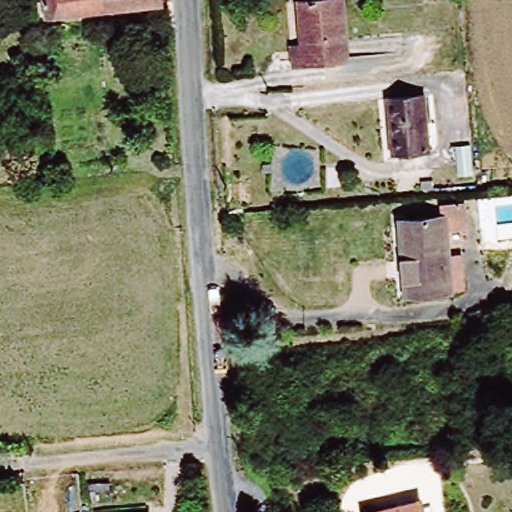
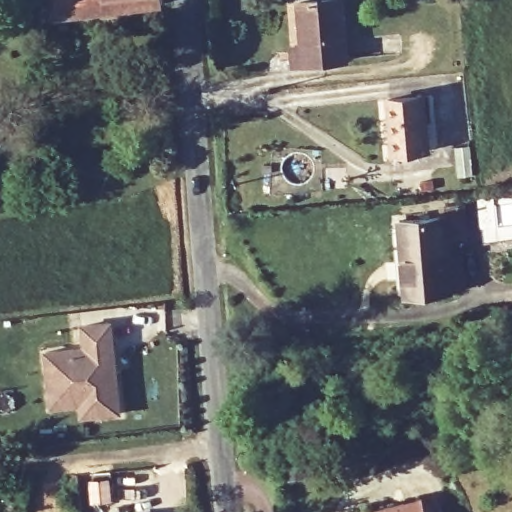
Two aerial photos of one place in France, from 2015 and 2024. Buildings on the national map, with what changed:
unchanged [(169,8),(65,17),(65,13),(48,14),(48,0),(169,0),(169,8)]
unchanged [(294,4),(340,1),(344,62),(289,67),(287,47),(297,45),(294,4)]
unchanged [(388,100),(425,98),(431,154),(395,158),(388,100)]
unchanged [(405,297),(399,221),(450,216),(449,207),(470,206),(472,231),(451,233),(456,293),(405,297)]
new [(121,416),(81,421),(78,407),(49,411),(43,352),(82,348),(80,325),(111,321),(121,416)]
unchanged [(426,512),(370,512),(423,500),(426,512)]

